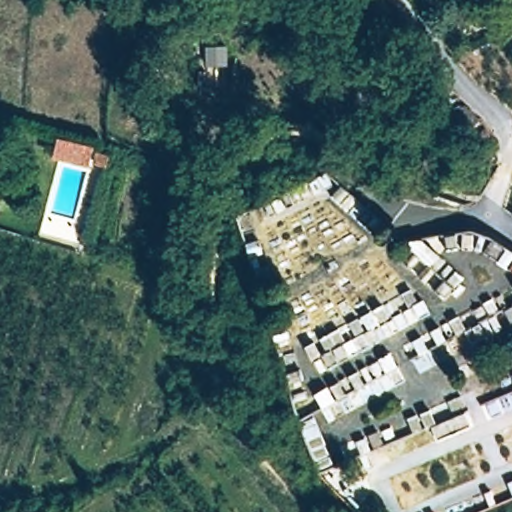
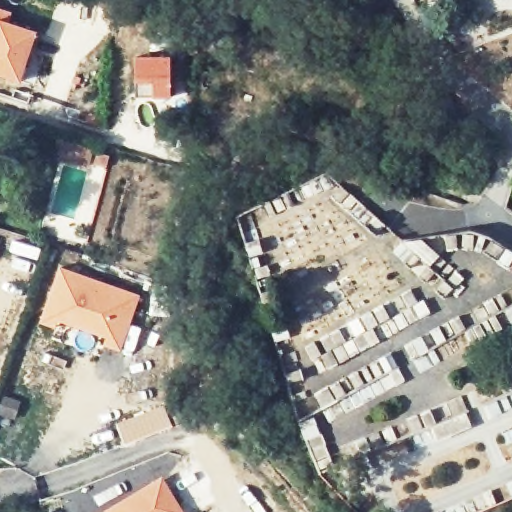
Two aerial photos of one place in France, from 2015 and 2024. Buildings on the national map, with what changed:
new [(3,20),(38,32),(22,82),(0,74),(0,9),(6,11),(3,20)]
new [(135,57),(167,57),(169,97),(137,97),(135,57)]
unchanged [(52,134),(91,144),(85,166),(49,156),(52,134)]
new [(120,352),(103,345),(105,338),(59,321),(56,328),(39,322),(60,267),(140,296),(120,352)]
new [(165,405),(172,426),(125,446),(117,423),(165,405)]
new [(180,512),(95,512),(165,480),(180,512)]

